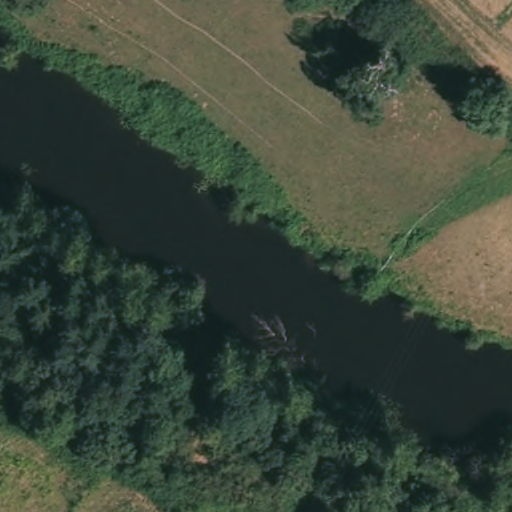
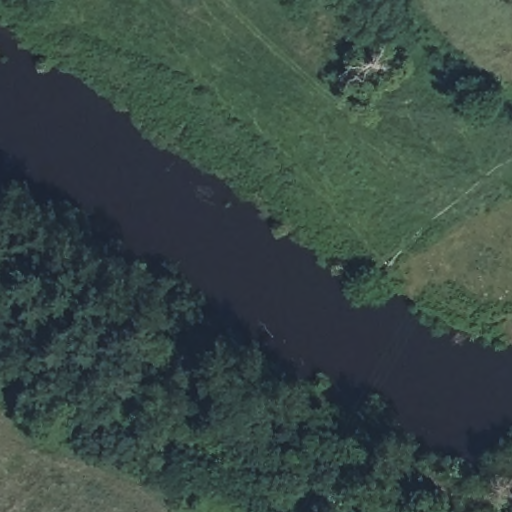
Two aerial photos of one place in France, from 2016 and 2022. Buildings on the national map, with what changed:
[]

